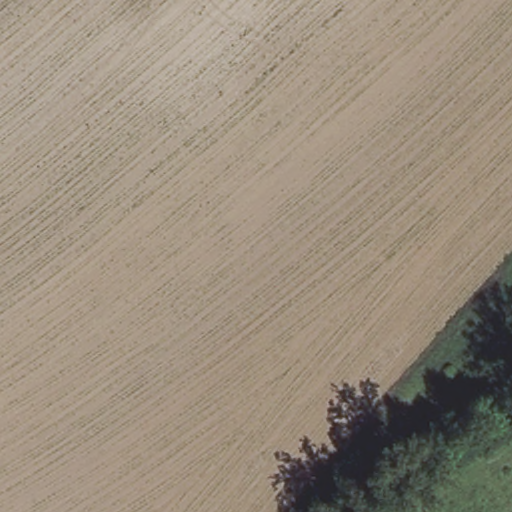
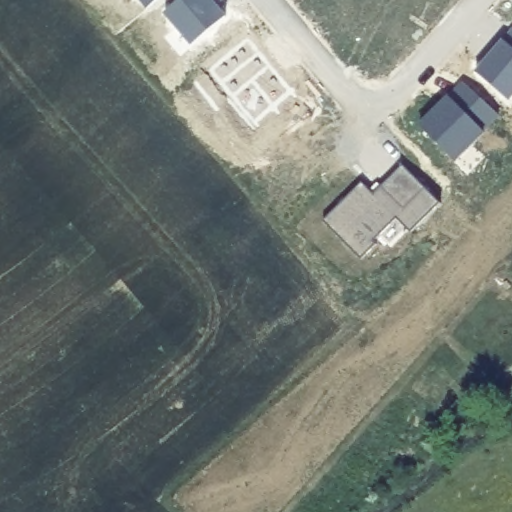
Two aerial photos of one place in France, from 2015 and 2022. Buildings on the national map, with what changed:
new [(149,10),(141,0),(160,0),(149,10)]
new [(184,0),(211,0),(210,1),(218,10),(220,9),(228,18),(194,47),(166,15),(184,0)]
new [(485,64),(487,65),(495,56),(493,54),(512,31),(512,101),(511,102),(477,73),(485,64)]
new [(248,41),(292,93),(254,124),(212,72),(248,41)]
new [(450,98),(465,83),(500,116),(485,131),(487,134),(457,163),(422,127),(438,111),(450,98)]
new [(364,183),(375,195),(404,167),(402,165),(402,164),(442,204),(413,234),(399,220),(376,243),(379,245),(364,261),(325,222),(364,183)]

